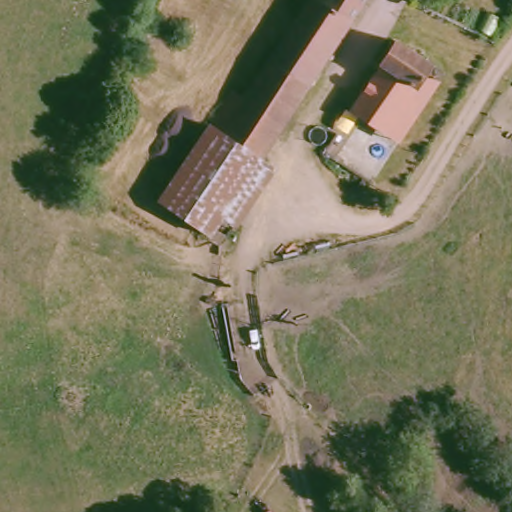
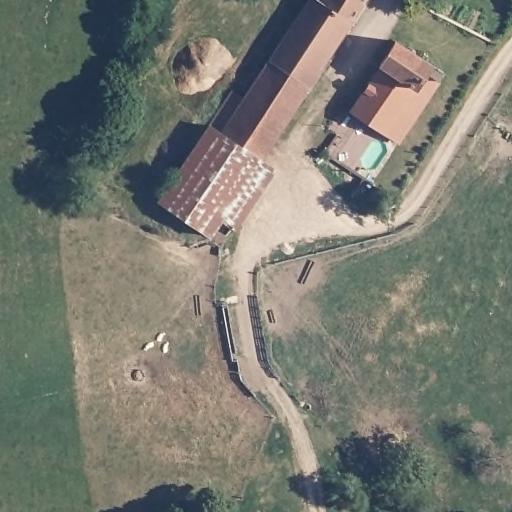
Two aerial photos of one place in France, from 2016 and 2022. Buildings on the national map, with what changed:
unchanged [(225,138),(315,2),(325,7),(330,0),(369,0),(262,162),(225,138)]
unchanged [(440,72),(391,143),(351,115),(380,71),(375,67),(392,42),(440,72)]
unchanged [(262,162),(211,240),(162,209),(213,130),(225,138),(262,162)]

